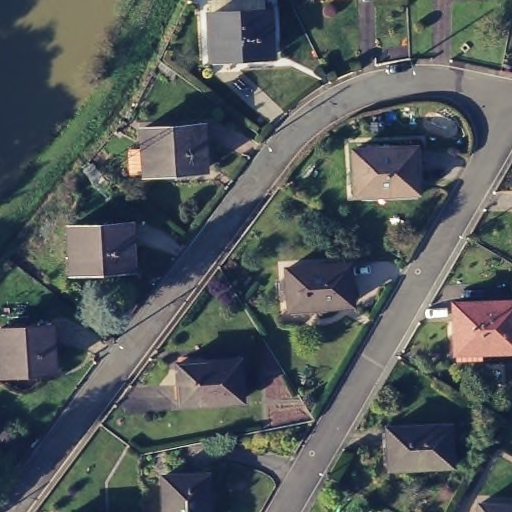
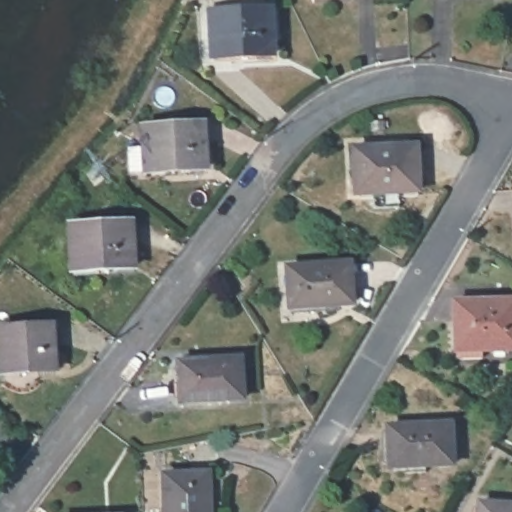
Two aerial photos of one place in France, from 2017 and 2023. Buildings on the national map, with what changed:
unchanged [(271,56),(210,60),(207,15),(213,15),(212,2),(263,0),(263,12),(269,12),(271,56)]
unchanged [(211,165),(150,170),(150,168),(136,169),(135,146),(147,145),(146,125),(207,121),(211,165)]
unchanged [(353,147),(414,143),(416,188),(355,191),(353,147)]
unchanged [(74,223),(135,220),(138,265),(76,267),(74,223)]
unchanged [(286,264),(348,260),(351,300),(289,304),(286,264)]
unchanged [(458,300),(512,297),(512,346),(460,348),(458,300)]
unchanged [(2,327),(54,322),(59,367),(5,370),(2,327)]
unchanged [(177,358),(238,355),(241,398),(180,402),(177,358)]
unchanged [(386,423),(449,421),(451,461),(388,464),(386,423)]
unchanged [(202,471),(203,512),(159,512),(158,472),(202,471)]
unchanged [(512,503),(512,512),(473,512),(473,500),(512,503)]
unchanged [(115,512),(94,512),(115,511),(115,512)]

